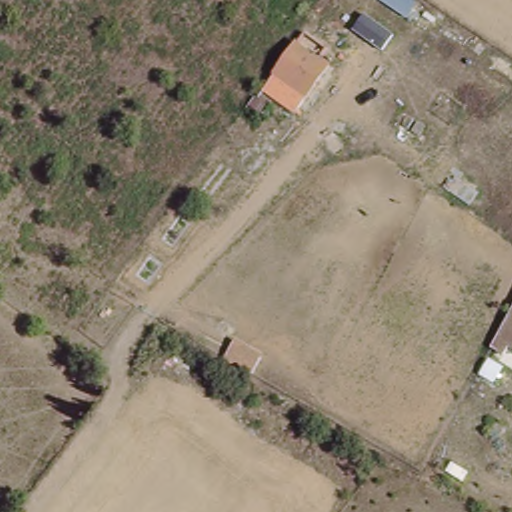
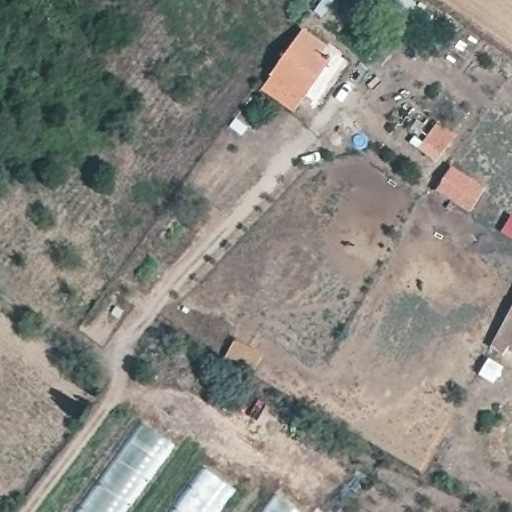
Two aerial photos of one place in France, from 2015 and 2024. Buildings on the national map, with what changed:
unchanged [(250,89),(255,92),(261,84),(305,26),(325,41),(317,52),(327,60),(293,107),(271,90),(255,111),(241,101),(250,89)]
unchanged [(419,121),(425,125),(418,134),(412,130),(419,121)]
new [(470,211),(436,191),(452,165),(486,187),(470,211)]
unchanged [(512,315),(512,349),(508,355),(495,347),(512,315)]
new [(78,512),(143,423),(172,445),(123,512),(78,512)]
new [(172,512),(205,467),(235,490),(218,512),(172,512)]
new [(299,512),(263,512),(276,495),(299,512)]

